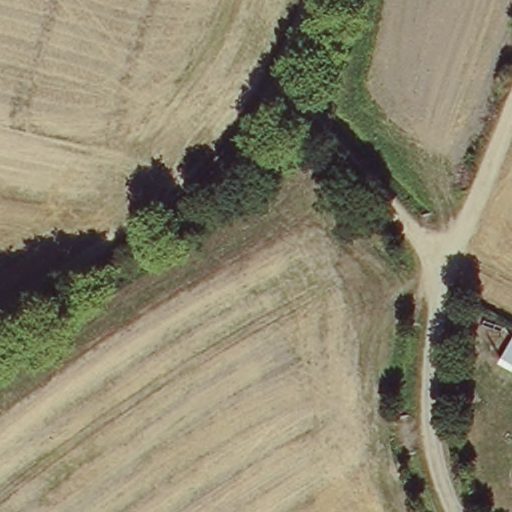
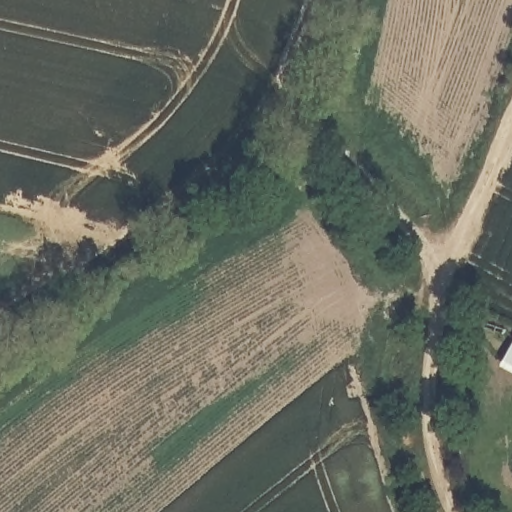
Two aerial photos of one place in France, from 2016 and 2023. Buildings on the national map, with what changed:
unchanged [(495,364),(512,333),(512,374),(495,364)]

